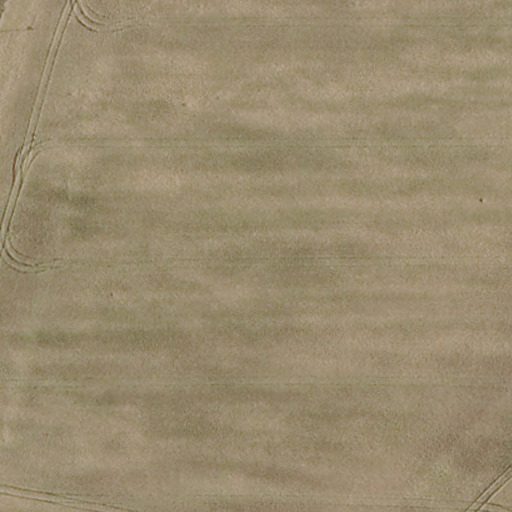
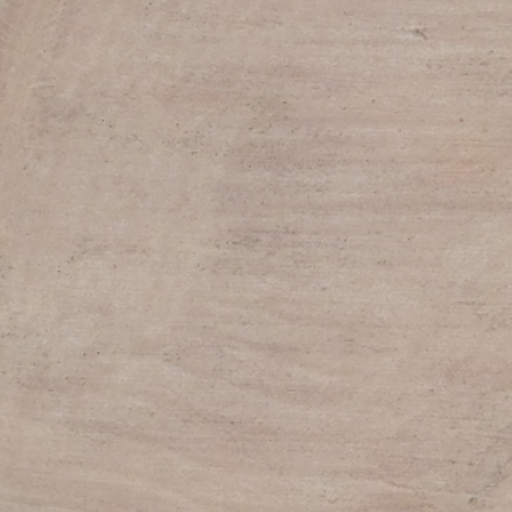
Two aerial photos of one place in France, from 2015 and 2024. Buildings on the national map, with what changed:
[]

